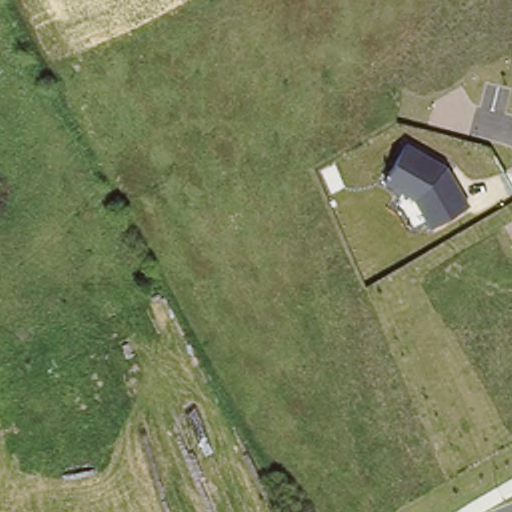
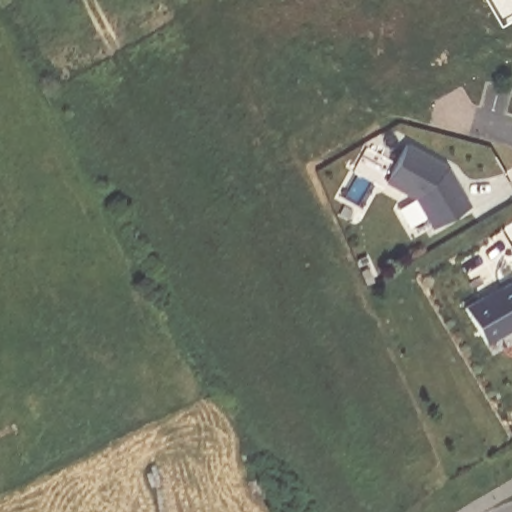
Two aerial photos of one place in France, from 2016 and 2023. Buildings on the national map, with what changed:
unchanged [(414,198),(385,181),(407,141),(447,165),(469,206),(430,228),(414,198)]
new [(490,297),(490,299),(512,286),(512,333),(493,345),(471,308),(490,297)]

